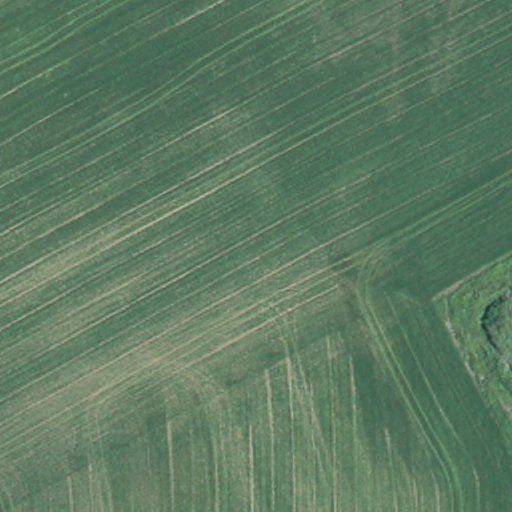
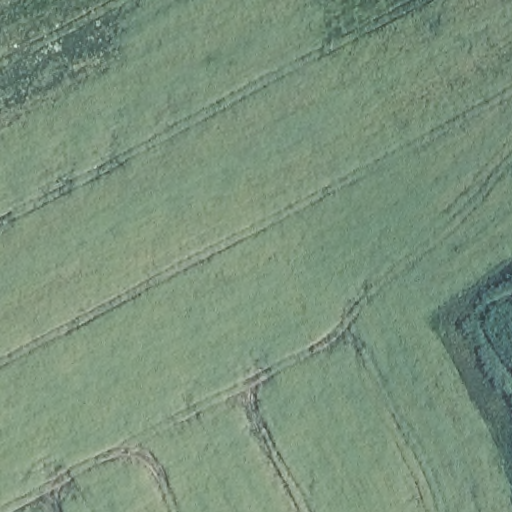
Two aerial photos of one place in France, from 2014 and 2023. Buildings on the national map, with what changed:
[]

